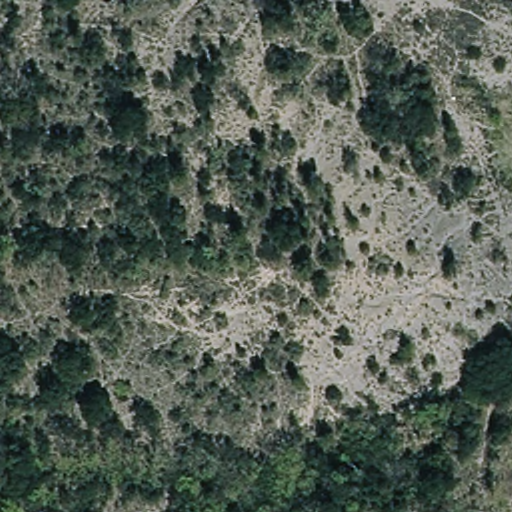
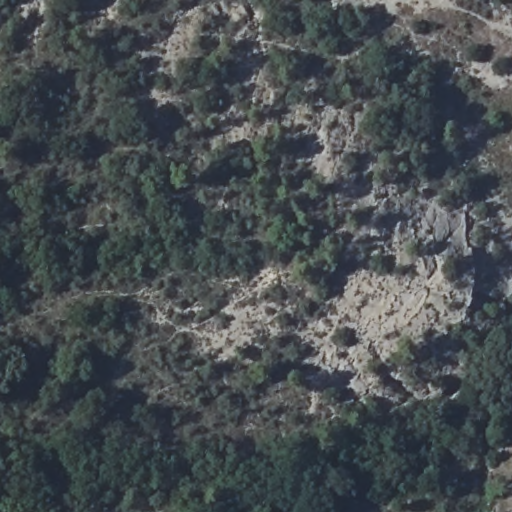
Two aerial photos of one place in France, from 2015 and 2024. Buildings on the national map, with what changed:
[]

